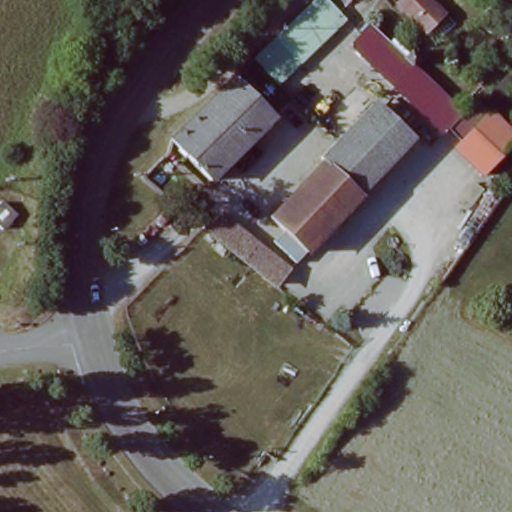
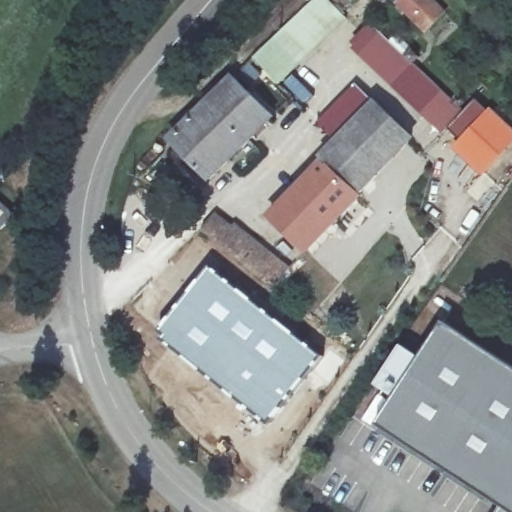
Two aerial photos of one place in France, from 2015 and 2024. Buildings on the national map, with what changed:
unchanged [(285,90),(257,62),(321,0),(331,0),(355,24),(285,90)]
unchanged [(396,0),(430,0),(444,17),(421,37),(391,5),(396,0)]
unchanged [(463,111),(441,133),(351,44),(373,22),(463,111)]
unchanged [(206,192),(165,152),(250,70),(251,71),(288,110),(206,192)]
unchanged [(458,152),(464,142),(453,130),(479,95),(495,105),(512,123),(512,154),(489,181),(458,152)]
unchanged [(318,154),(372,101),(412,139),(359,194),(322,160),(318,154)]
unchanged [(359,194),(305,249),(290,235),(283,242),(264,224),(322,160),(359,194)]
unchanged [(13,216),(0,232),(0,205),(13,216)]
unchanged [(267,283),(197,227),(206,219),(225,232),(230,227),(282,267),(267,283)]
new [(211,265),(323,356),(269,425),(176,351),(157,331),(211,265)]
new [(512,366),(512,512),(497,512),(502,503),(380,423),(445,322),(512,366)]

